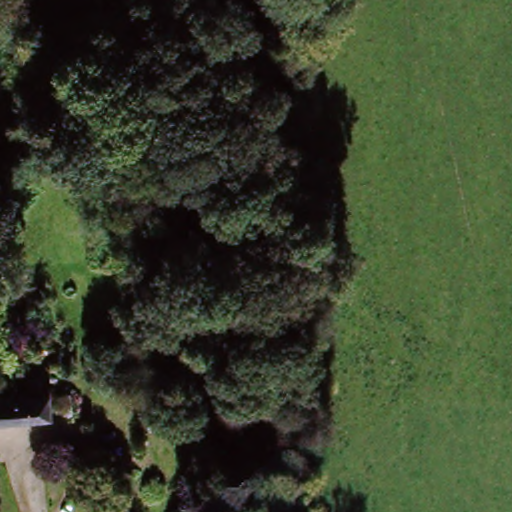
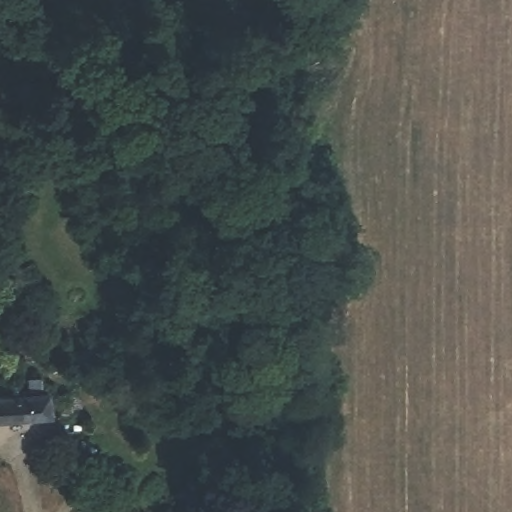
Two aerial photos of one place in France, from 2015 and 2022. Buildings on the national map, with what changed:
unchanged [(256,15),(256,8),(255,0),(283,0),(283,6),(300,5),(301,12),(301,21),(256,23),(256,15)]
unchanged [(290,401),(290,366),(315,366),(316,366),(322,366),(322,376),(323,398),(323,400),(318,400),(315,401),(290,401)]
unchanged [(15,395),(15,389),(51,389),(51,419),(0,424),(0,395),(15,395)]

